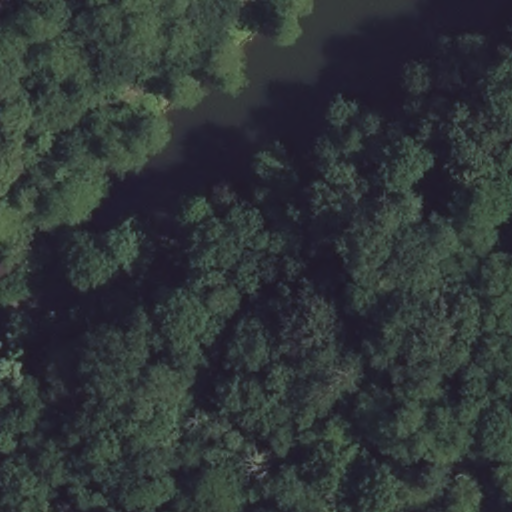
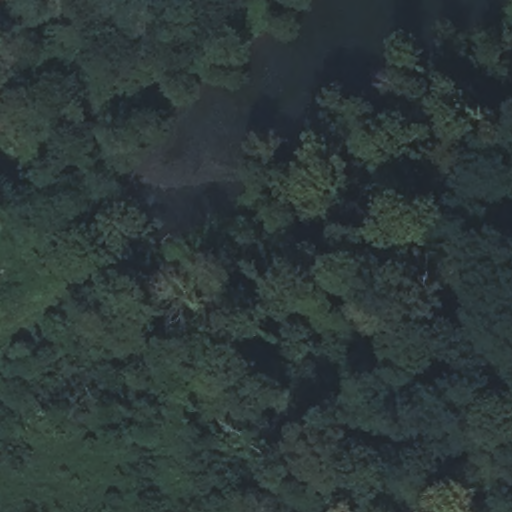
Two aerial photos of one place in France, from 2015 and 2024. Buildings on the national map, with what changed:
[]

